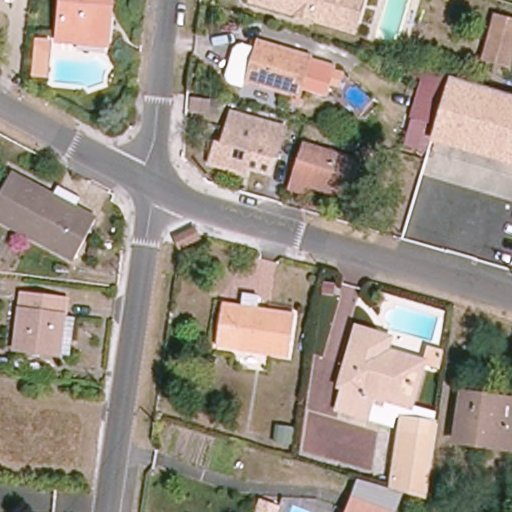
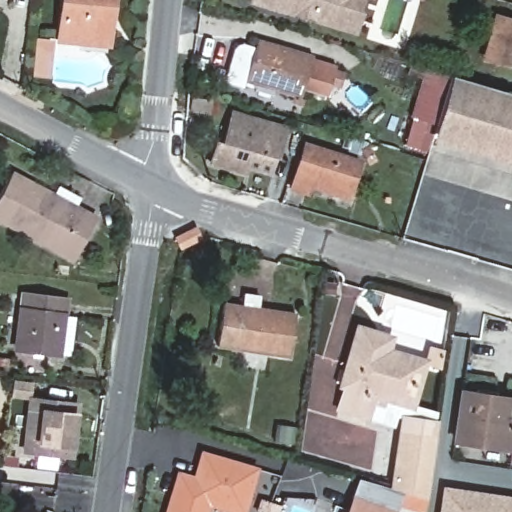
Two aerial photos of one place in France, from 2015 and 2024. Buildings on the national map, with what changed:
unchanged [(102,7),(99,40),(63,37),(66,0),(111,0),(110,8),(102,7)]
unchanged [(250,3),(251,0),(366,0),(356,34),(250,3)]
unchanged [(512,20),(512,61),(511,66),(484,59),(497,16),(512,20)]
unchanged [(313,55),(312,59),(337,65),(328,96),(303,89),(300,98),(247,83),(244,89),(229,84),(224,76),(234,46),(243,45),(256,49),(259,40),(313,55)]
unchanged [(43,77),(45,47),(60,48),(58,78),(43,77)]
unchanged [(512,103),(512,158),(432,133),(445,83),(512,103)]
unchanged [(213,99),(211,114),(192,112),(194,97),(213,99)]
unchanged [(247,174),(212,164),(218,143),(224,144),(232,113),(273,124),(272,128),(285,131),(278,160),(253,153),(247,174)]
unchanged [(359,161),(349,198),(310,186),(308,194),(293,189),(306,144),(359,161)]
unchanged [(58,190),(79,202),(76,207),(99,219),(76,260),(0,219),(0,195),(12,173),(54,195),(58,190)]
unchanged [(66,299),(59,354),(17,349),(24,294),(66,299)]
unchanged [(292,314),(285,357),(214,347),(219,304),(292,314)]
unchanged [(382,353),(418,364),(406,405),(368,394),(362,415),(337,408),(343,387),(339,386),(355,331),(386,339),(382,353)]
unchanged [(437,352),(434,367),(423,363),(426,349),(437,352)]
unchanged [(450,441),(458,393),(512,401),(512,451),(450,441)]
new [(73,458),(22,452),(29,396),(79,402),(73,458)]
unchanged [(427,499),(391,488),(402,416),(438,421),(427,499)]
new [(208,512),(165,512),(177,471),(192,475),(199,450),(259,468),(246,512),(227,512),(209,507),(208,512)]
new [(443,486),(512,495),(512,512),(439,512),(443,486)]
unchanged [(393,512),(352,512),(358,498),(393,511),(393,512)]

